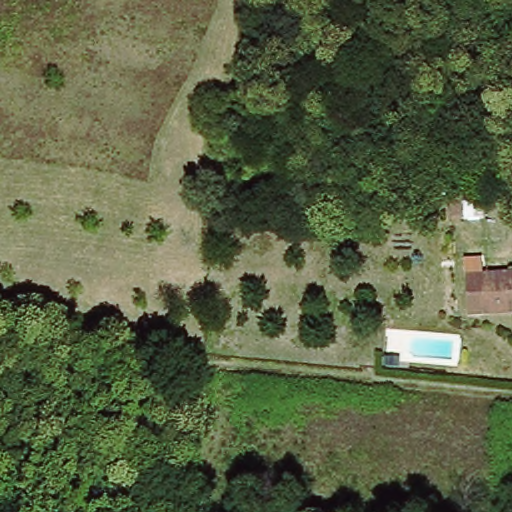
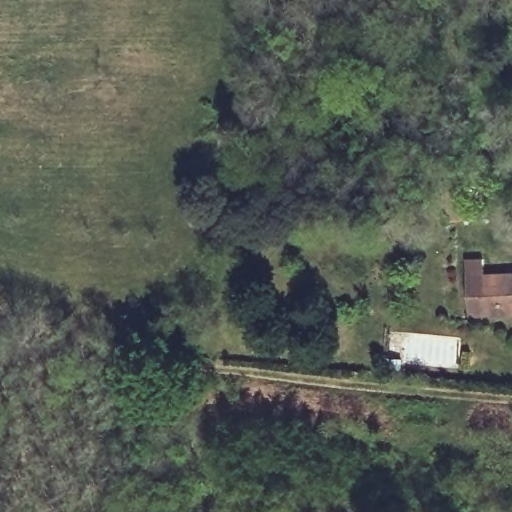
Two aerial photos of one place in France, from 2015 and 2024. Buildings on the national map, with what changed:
unchanged [(506,197),(482,198),(480,153),(502,151),(506,197)]
unchanged [(512,274),(512,313),(497,314),(473,314),(473,310),(472,275),(512,274)]

